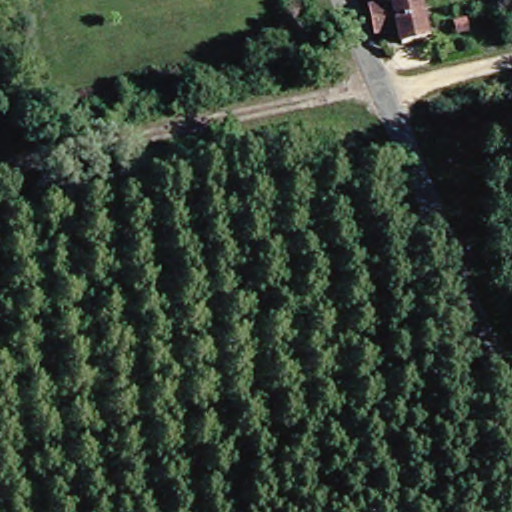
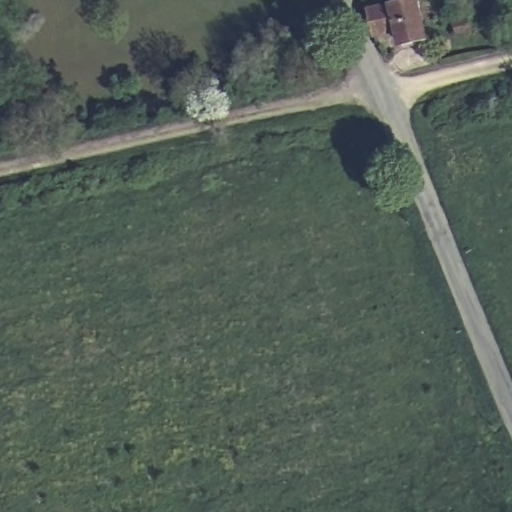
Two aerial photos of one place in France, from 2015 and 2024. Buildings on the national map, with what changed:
unchanged [(405,1),(413,43),(396,49),(392,35),(368,39),(360,11),(405,1)]

